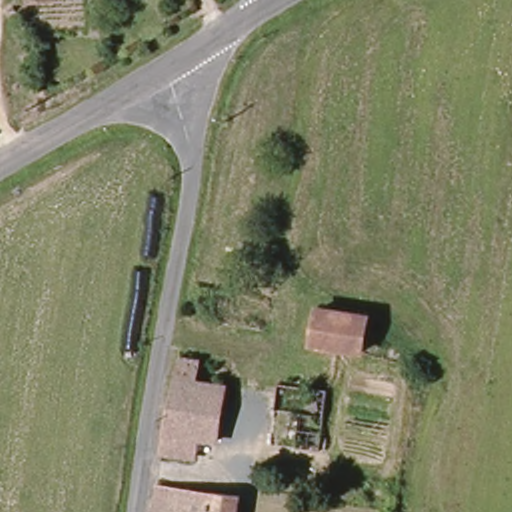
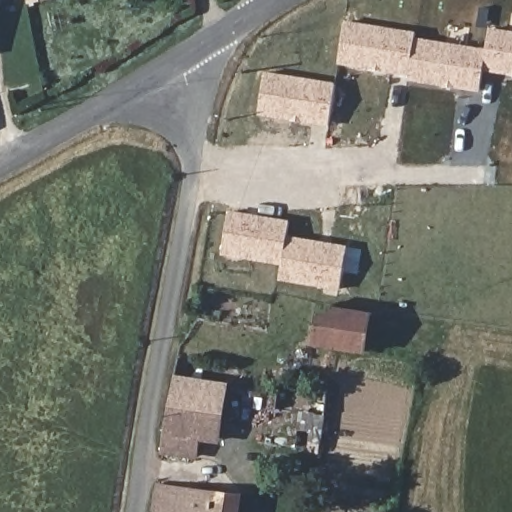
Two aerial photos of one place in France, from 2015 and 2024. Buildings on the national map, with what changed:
unchanged [(29,0),(53,0),(53,5),(30,7),(29,0)]
new [(512,31),(512,76),(484,71),(480,91),(408,80),(409,76),(337,65),(345,21),(417,32),(415,37),(486,49),(489,27),(512,31)]
new [(334,82),(328,126),(259,115),(266,71),(334,82)]
new [(287,236),(347,245),(339,290),(279,280),(282,266),(221,255),(229,210),(289,220),(287,236)]
demolished [(278,301),(274,332),(203,323),(206,292),(278,301)]
unchanged [(361,350),(343,346),(313,340),(319,306),(366,317),(361,350)]
unchanged [(197,351),(194,376),(229,380),(223,434),(207,432),(205,446),(170,443),(186,350),(197,351)]
demolished [(279,444),(288,383),(339,390),(331,451),(279,444)]
unchanged [(239,500),(237,512),(152,512),(155,491),(239,500)]

